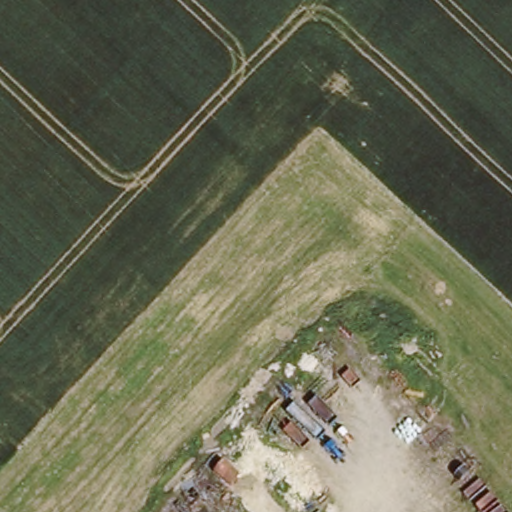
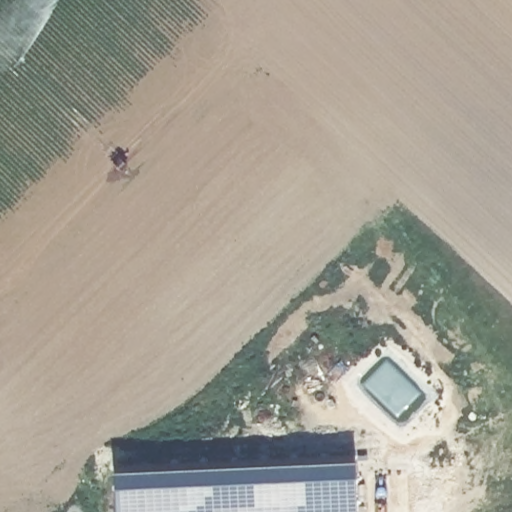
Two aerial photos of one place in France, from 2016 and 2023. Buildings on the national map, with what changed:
new [(355,452),(356,512),(116,512),(115,463),(355,452)]

